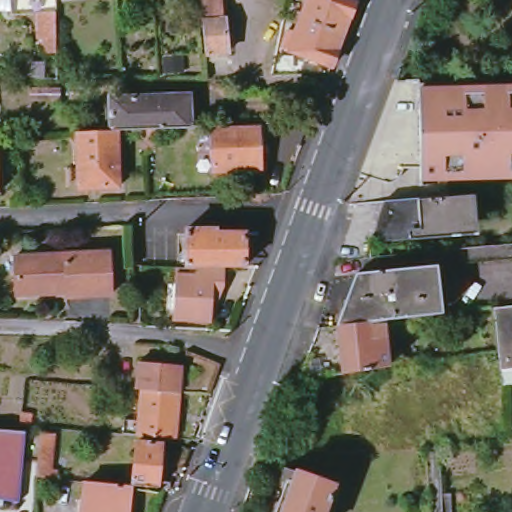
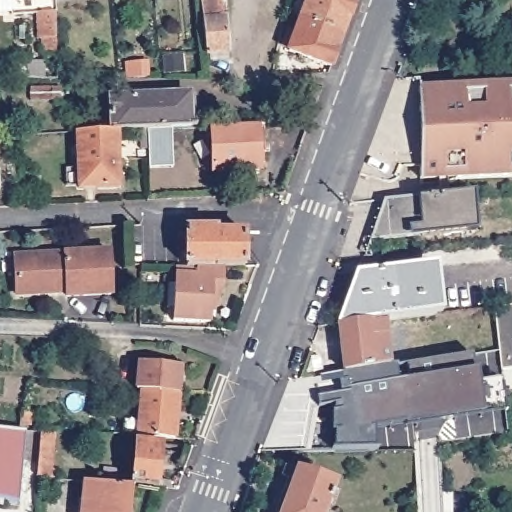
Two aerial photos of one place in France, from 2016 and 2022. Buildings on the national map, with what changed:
unchanged [(225,19),(229,19),(231,53),(207,55),(203,0),(224,0),(225,19)]
unchanged [(282,24),(284,16),(306,24),(312,3),(304,0),(345,0),(340,14),(352,18),(341,46),(305,32),(282,24)]
unchanged [(55,9),(53,48),(30,50),(30,10),(55,9)]
unchanged [(341,46),(329,78),(292,63),(305,32),(341,46)]
unchanged [(424,89),(466,87),(512,85),(512,163),(424,171),(424,89)]
unchanged [(115,131),(110,131),(108,90),(150,89),(187,88),(191,89),(193,128),(158,129),(157,141),(146,141),(146,130),(115,131)]
unchanged [(264,125),(264,157),(257,157),(257,171),(212,173),(210,127),(264,125)]
unchanged [(110,131),(115,131),(116,185),(78,187),(76,133),(110,131)]
unchanged [(430,201),(474,199),(476,235),(381,240),(395,203),(430,201)]
unchanged [(227,271),(191,270),(190,232),(222,231),(222,235),(249,235),(248,271),(227,271)]
unchanged [(512,257),(436,263),(360,269),(365,257),(512,245),(512,257)]
unchanged [(65,284),(56,285),(56,289),(35,291),(34,286),(13,287),(13,257),(114,252),(114,293),(65,295),(65,284)]
unchanged [(383,321),(338,326),(350,297),(362,296),(360,269),(436,263),(440,315),(383,321)]
unchanged [(191,270),(227,271),(227,290),(224,298),(216,298),(216,324),(180,324),(179,270),(191,270)]
unchanged [(512,366),(505,367),(498,303),(512,302),(512,366)]
unchanged [(345,374),(338,326),(383,321),(390,369),(345,374)]
new [(505,412),(482,415),(374,430),(374,451),(332,451),(333,432),(331,432),(330,413),(333,412),(333,406),(317,409),(316,398),(315,386),(337,383),(336,374),(345,374),(390,369),(471,355),(476,371),(478,382),(501,380),(505,412)]
unchanged [(141,390),(136,390),(138,362),(181,366),(178,393),(141,390)]
unchanged [(178,393),(175,440),(137,437),(141,390),(178,393)]
unchanged [(25,411),(35,414),(34,426),(23,424),(25,411)]
unchanged [(23,431),(31,431),(22,508),(0,506),(0,429),(23,431)]
unchanged [(36,477),(38,433),(57,434),(53,479),(36,477)]
unchanged [(134,485),(136,442),(159,444),(155,487),(134,485)]
unchanged [(338,483),(327,512),(283,512),(300,470),(338,483)]
unchanged [(129,512),(83,512),(85,481),(132,485),(129,512)]

